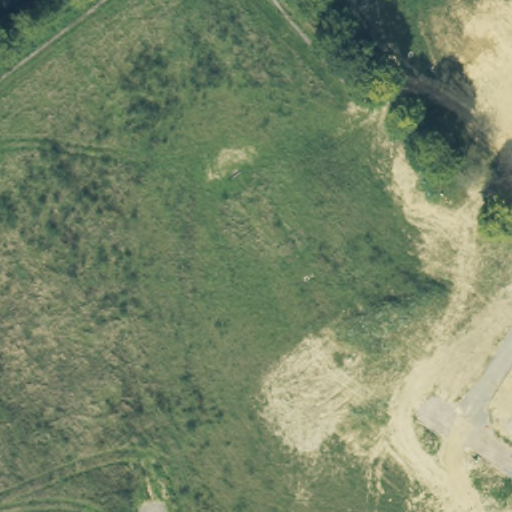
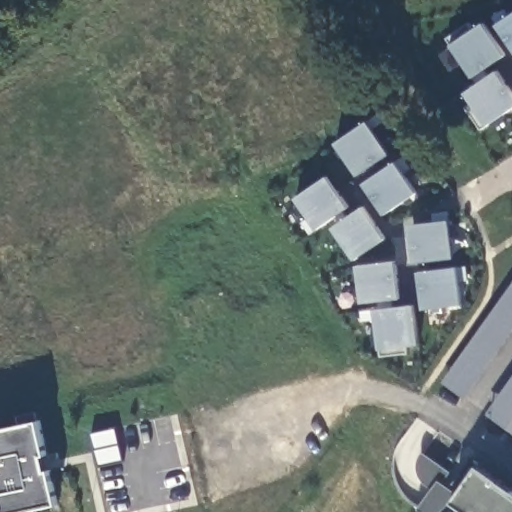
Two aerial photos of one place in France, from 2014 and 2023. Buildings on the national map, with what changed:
new [(497,25),(512,14),(512,49),(497,25)]
new [(493,64),(512,91),(512,108),(488,125),(481,130),(466,109),(472,104),(465,92),(477,85),(451,44),(482,22),(505,56),(493,64)]
new [(358,176),(336,142),(368,120),(392,153),(358,176)]
new [(386,215),(363,184),(397,160),(418,192),(386,215)]
new [(318,230),(312,235),(302,222),(309,217),(296,198),(327,176),(348,207),(318,230)]
new [(355,260),(332,228),(364,206),(386,240),(355,260)]
new [(413,263),(408,225),(450,220),(454,258),(413,263)]
new [(378,351),(373,307),(372,302),(361,303),(356,264),(397,260),(402,307),(416,306),(420,347),(378,351)]
new [(422,309),(417,271),(457,266),(462,306),(422,309)]
new [(466,398),(443,382),(512,283),(512,334),(466,398)]
new [(487,413),(512,378),(512,424),(509,428),(487,413)]
new [(40,421),(47,455),(42,457),(45,471),(50,470),(57,503),(19,512),(0,512),(0,424),(2,428),(40,421)]
new [(509,428),(512,424),(512,431),(509,428)]
new [(116,428),(123,462),(97,467),(91,433),(116,428)]
new [(454,502),(442,512),(422,512),(418,510),(433,489),(424,482),(419,477),(417,466),(420,457),(424,452),(451,472),(443,483),(459,493),(478,465),(512,489),(512,512),(468,512),(454,502)]

